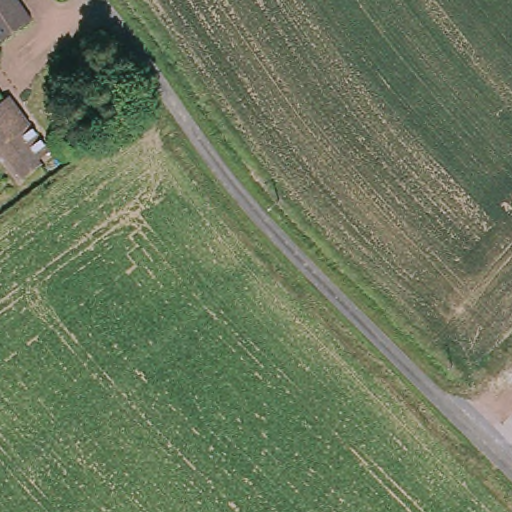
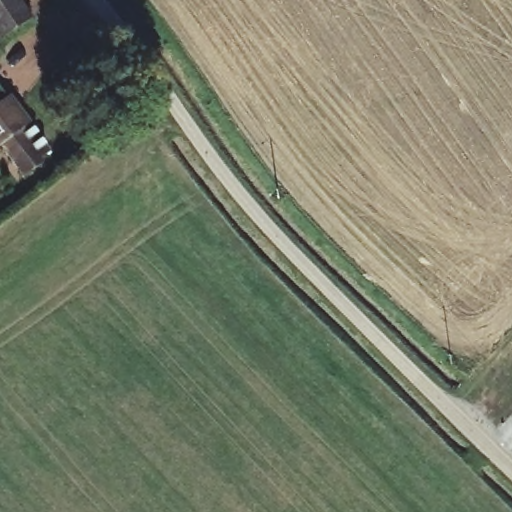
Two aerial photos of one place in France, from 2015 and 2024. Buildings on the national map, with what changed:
unchanged [(30,18),(25,22),(0,38),(0,0),(18,0),(30,18)]
unchanged [(38,170),(23,181),(0,150),(0,102),(2,105),(5,103),(10,99),(31,126),(51,154),(36,166),(38,170)]

